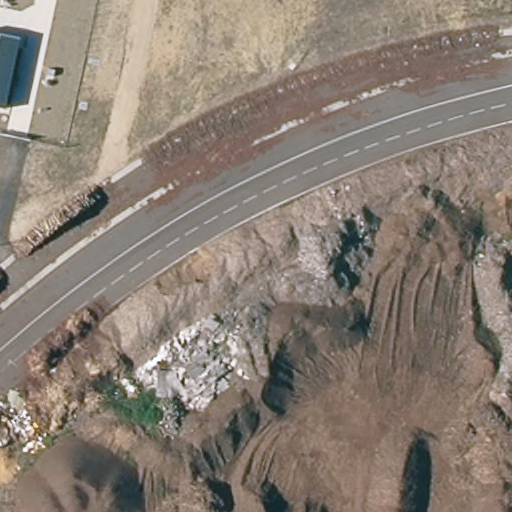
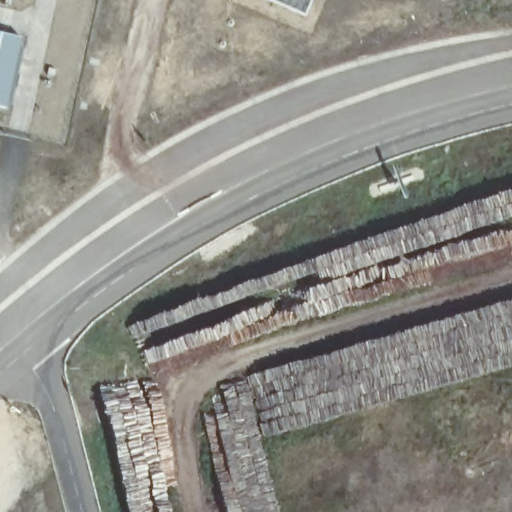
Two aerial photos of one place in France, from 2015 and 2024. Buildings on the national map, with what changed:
new [(304,16),(267,0),(310,0),(304,16)]
unchanged [(6,108),(0,106),(0,34),(20,38),(6,108)]

